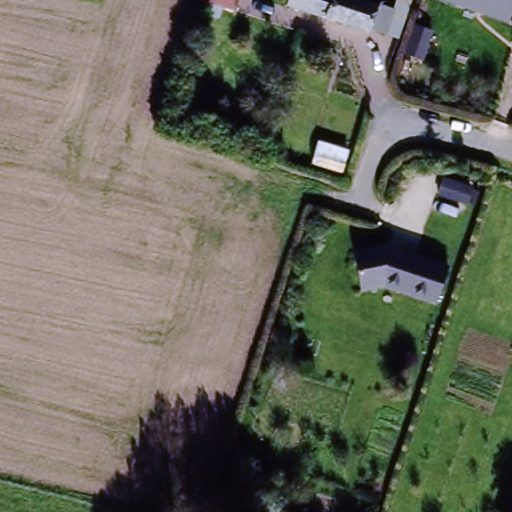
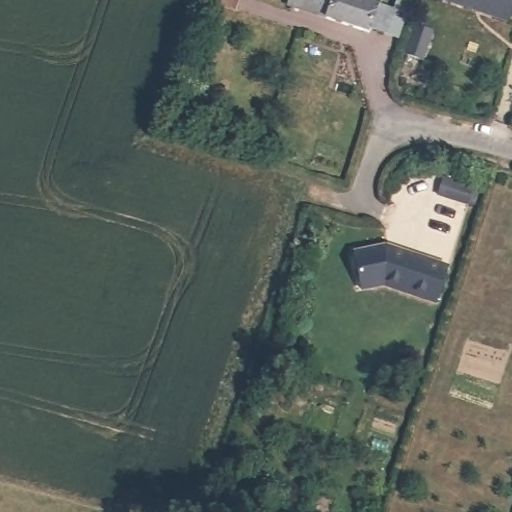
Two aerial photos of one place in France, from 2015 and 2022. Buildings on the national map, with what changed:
unchanged [(202,1),(203,0),(237,0),(234,11),(202,1)]
unchanged [(366,30),(285,5),(286,0),(368,0),(374,2),(373,6),(383,9),(386,0),(406,0),(392,41),(366,30)]
unchanged [(512,0),(512,16),(511,20),(442,0),(512,0)]
unchanged [(435,306),(387,289),(360,295),(352,252),(384,246),(448,268),(435,306)]

